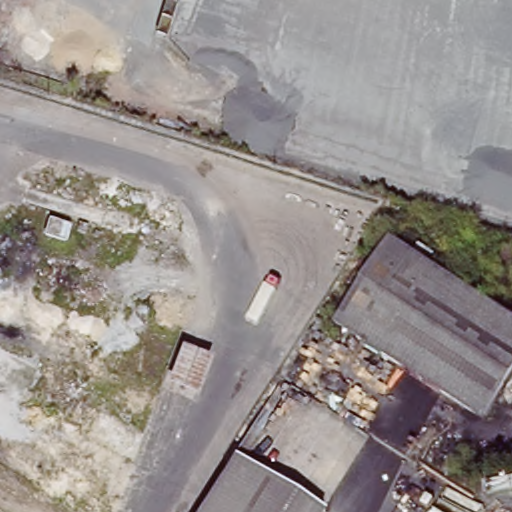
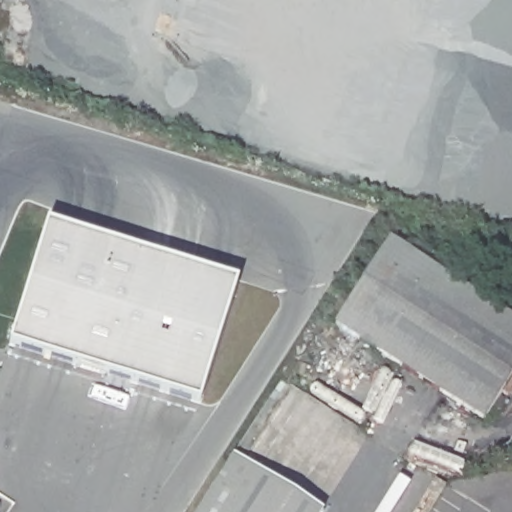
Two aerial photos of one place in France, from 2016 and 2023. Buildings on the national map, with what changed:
new [(200,401),(9,341),(46,221),(239,280),(200,401)]
unchanged [(512,321),(512,377),(484,420),(337,325),(390,242),(512,321)]
unchanged [(235,456),(324,509),(322,512),(194,512),(235,456)]

